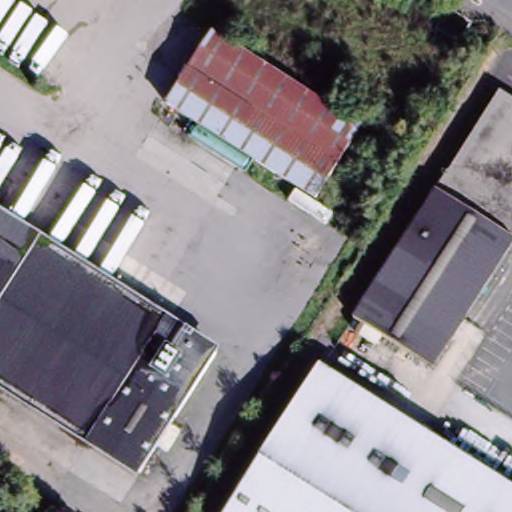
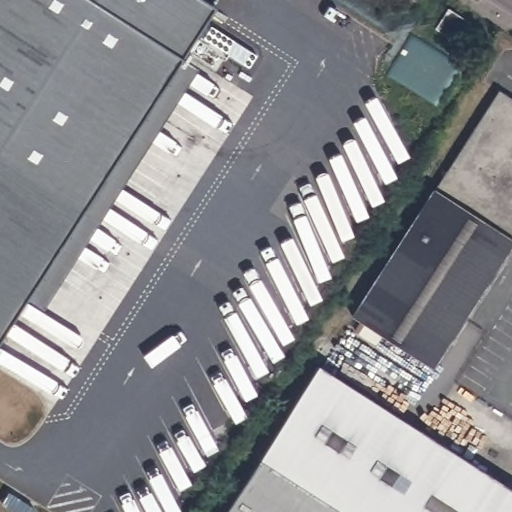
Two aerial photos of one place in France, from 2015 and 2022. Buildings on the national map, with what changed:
new [(216,6),(183,57),(199,67),(45,307),(28,294),(0,337),(0,0),(206,0),(216,6)]
unchanged [(470,21),(460,39),(439,26),(450,9),(470,21)]
demolished [(359,132),(312,206),(161,110),(207,35),(359,132)]
unchanged [(497,91),(512,101),(512,223),(442,178),(497,91)]
unchanged [(442,178),(512,223),(512,244),(495,271),(415,220),(442,178)]
demolished [(120,477),(0,400),(0,208),(207,340),(120,477)]
unchanged [(387,262),(415,220),(495,271),(467,313),(387,262)]
unchanged [(387,262),(467,313),(440,354),(361,303),(387,262)]
unchanged [(440,354),(429,370),(352,318),(361,303),(440,354)]
unchanged [(512,499),(512,512),(218,512),(310,369),(512,499)]

